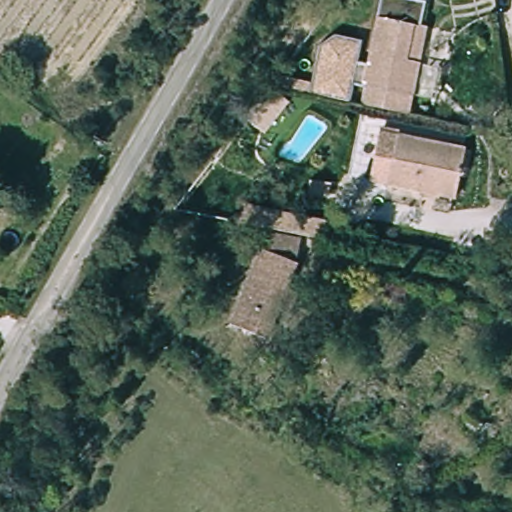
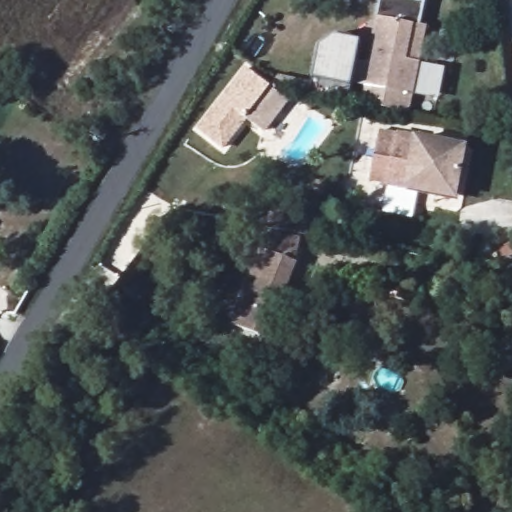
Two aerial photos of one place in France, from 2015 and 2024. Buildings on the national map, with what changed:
unchanged [(308,91),(317,45),(332,35),(358,40),(355,62),(365,64),(378,0),(415,0),(426,2),(422,24),(419,37),(414,60),(403,111),(308,91)]
new [(265,133),(248,120),(224,150),(196,129),(245,66),(290,101),(265,133)]
unchanged [(470,157),(461,199),(460,200),(458,200),(378,183),(387,140),(470,157)]
unchanged [(327,221),(324,245),(305,241),(299,260),(261,245),(265,231),(217,224),(224,200),(327,221)]
unchanged [(261,245),(299,260),(302,261),(274,336),(233,321),(261,245)]

